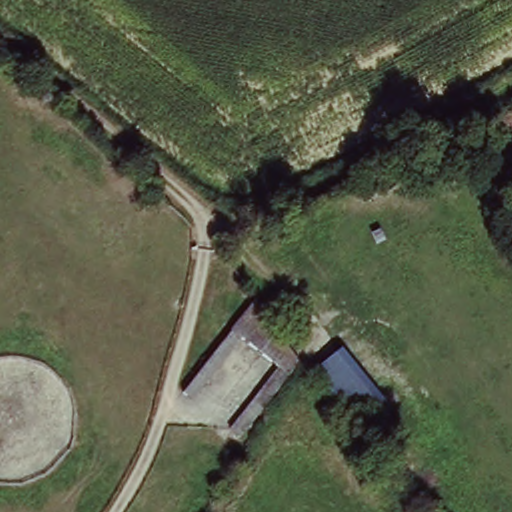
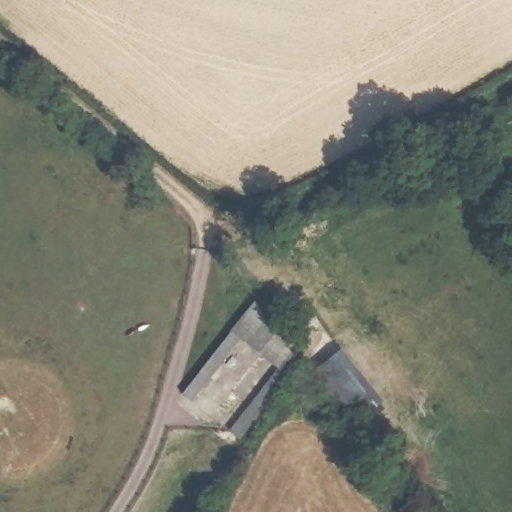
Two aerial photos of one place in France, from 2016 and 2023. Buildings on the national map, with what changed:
unchanged [(241,427),(233,420),(276,354),(239,329),(193,392),(184,385),(252,287),(299,347),(241,427)]
unchanged [(382,398),(349,418),(314,367),(342,344),(382,398)]

